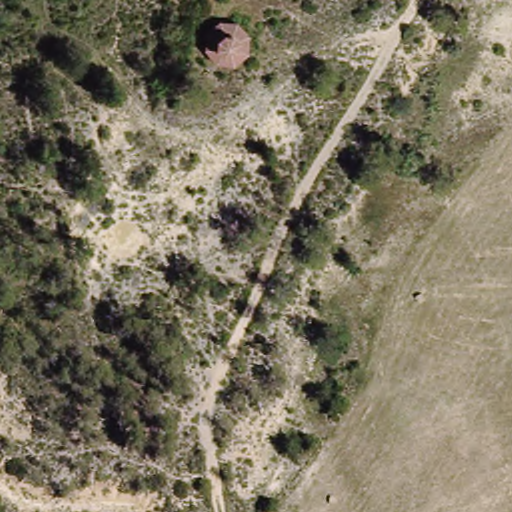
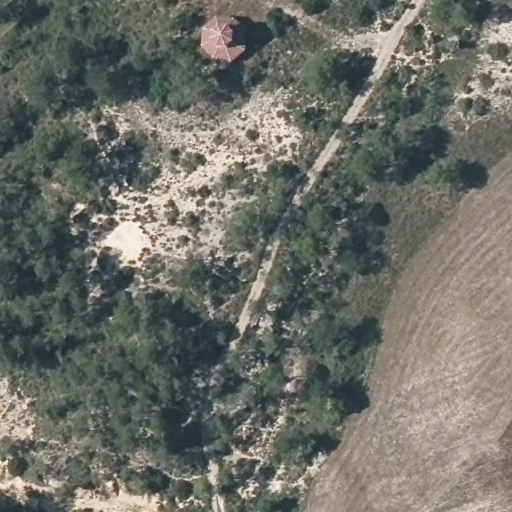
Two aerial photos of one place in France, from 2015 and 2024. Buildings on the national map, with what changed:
unchanged [(283,40),(283,41),(283,42),(283,43),(283,44),(282,44),(282,45),(282,46),(282,47),(281,48),(281,49),(281,50),(280,50),(280,51),(280,52),(279,52),(279,53),(279,54),(278,54),(278,55),(277,56),(277,57),(276,57),(275,58),(275,59),(274,59),(274,60),(273,60),(273,61),(272,61),(272,62),(271,62),(270,63),(269,63),(269,64),(268,64),(267,65),(266,65),(265,66),(264,66),(263,67),(262,67),(261,67),(260,68),(259,68),(258,68),(257,68),(255,69),(254,69),(253,69),(251,69),(250,69),(249,69),(248,69),(247,68),(246,68),(245,68),(244,68),(243,68),(243,67),(242,67),(241,67),(240,66),(239,66),(238,66),(238,65),(237,65),(236,65),(236,64),(235,64),(234,64),(234,63),(233,63),(233,62),(232,62),(231,61),(230,60),(230,59),(229,59),(228,58),(228,57),(227,57),(227,56),(226,56),(226,55),(226,54),(225,54),(225,53),(224,52),(224,51),(223,50),(223,49),(223,48),(222,47),(222,46),(222,45),(222,44),(222,43),(221,43),(221,42),(221,41),(221,40),(221,39),(221,37),(221,36),(221,35),(222,34),(222,33),(222,32),(222,31),(222,30),(223,29),(223,28),(223,27),(224,27),(224,26),(224,25),(225,24),(225,23),(226,23),(226,22),(227,21),(227,20),(228,20),(228,19),(229,19),(229,18),(230,17),(231,17),(231,16),(232,16),(232,15),(233,15),(233,14),(234,14),(235,13),(236,13),(236,12),(237,12),(238,11),(239,11),(240,10),(242,10),(242,9),(243,9),(244,9),(245,9),(246,9),(246,8),(247,8),(248,8),(249,8),(250,8),(251,8),(254,8),(255,8),(256,8),(257,8),(258,8),(259,8),(260,9),(261,9),(262,9),(263,9),(263,10),(264,10),(265,10),(266,11),(267,11),(268,12),(269,13),(270,13),(271,14),(272,14),(272,15),(273,15),(273,16),(274,16),(274,17),(275,17),(275,18),(276,18),(276,19),(277,19),(277,20),(278,21),(278,22),(279,22),(279,23),(279,24),(280,24),(280,25),(281,26),(281,27),(281,28),(282,29),(282,30),(282,31),(283,32),(283,33),(283,34),(283,35),(283,36),(283,37),(283,39),(283,40)]

